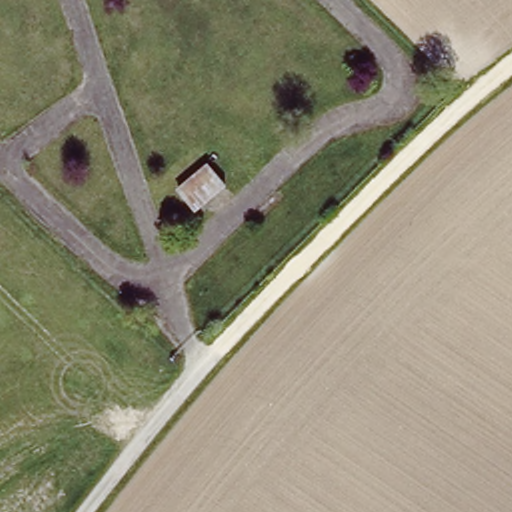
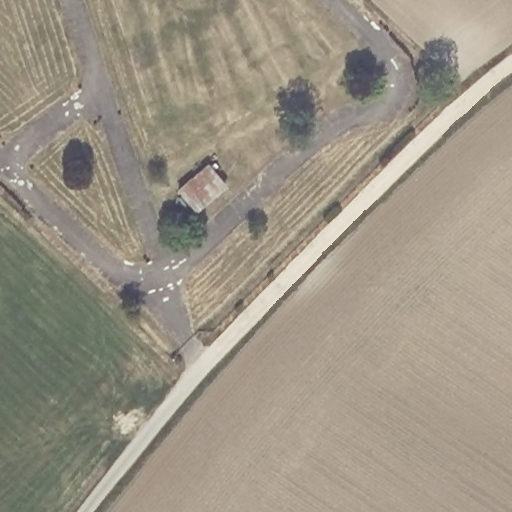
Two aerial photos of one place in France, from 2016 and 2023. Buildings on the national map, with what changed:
unchanged [(179,189),(209,163),(224,182),(196,208),(179,189)]

